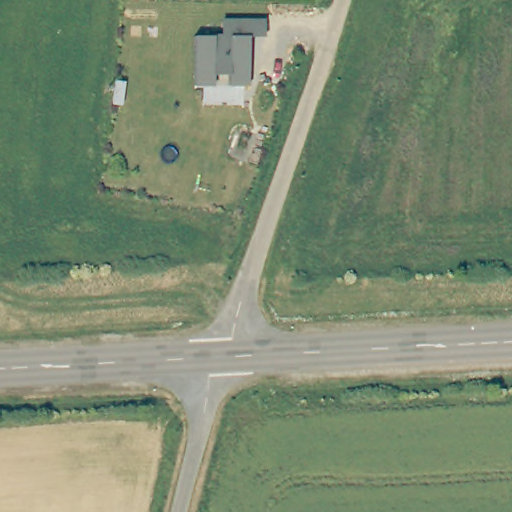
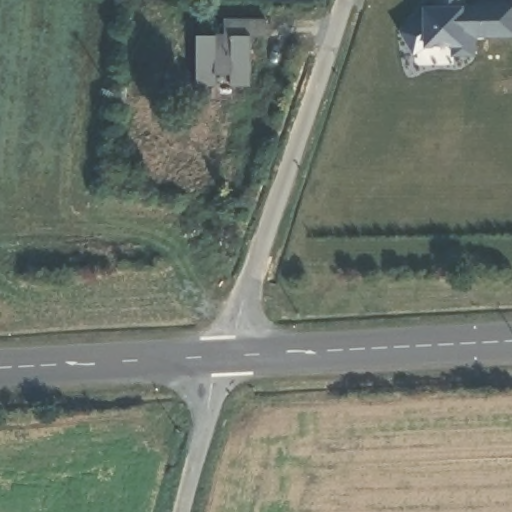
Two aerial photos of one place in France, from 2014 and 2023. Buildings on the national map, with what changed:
new [(474,39),(475,56),(451,57),(451,47),(428,47),(412,55),(397,31),(423,18),(423,5),(435,5),(435,0),(464,0),(465,4),(512,1),(512,37),(474,39)]
unchanged [(265,37),(250,38),(249,86),(228,86),(228,76),(215,75),(214,87),(196,86),(196,37),(222,36),(222,20),(265,20),(265,37)]

